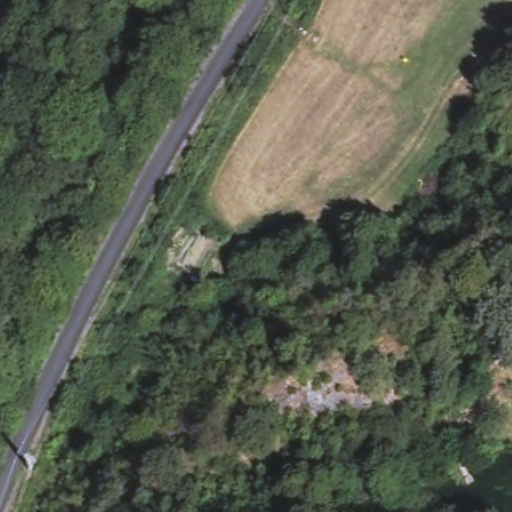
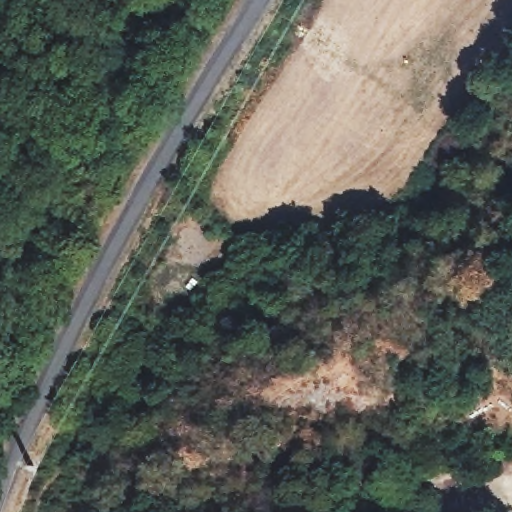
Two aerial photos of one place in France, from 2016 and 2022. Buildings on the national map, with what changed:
unchanged [(512,379),(482,411),(471,405),(441,429),(446,435),(408,463),(397,448),(462,397),(493,361),(512,377),(512,379)]

